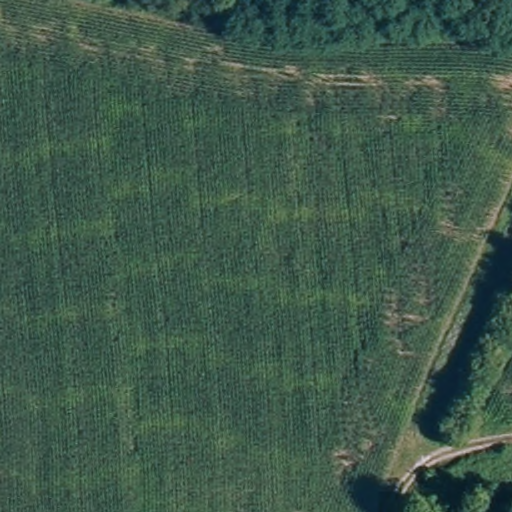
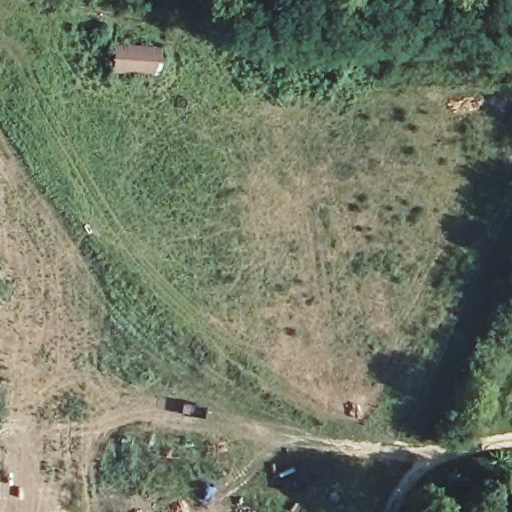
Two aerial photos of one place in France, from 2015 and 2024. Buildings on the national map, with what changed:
new [(114,43),(161,46),(160,61),(152,66),(151,76),(112,73),(112,57),(114,43)]

